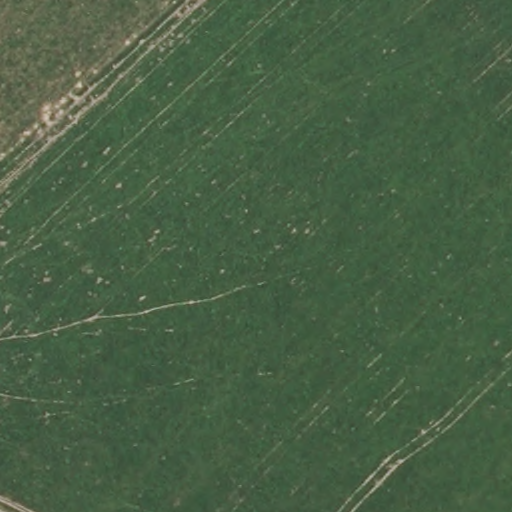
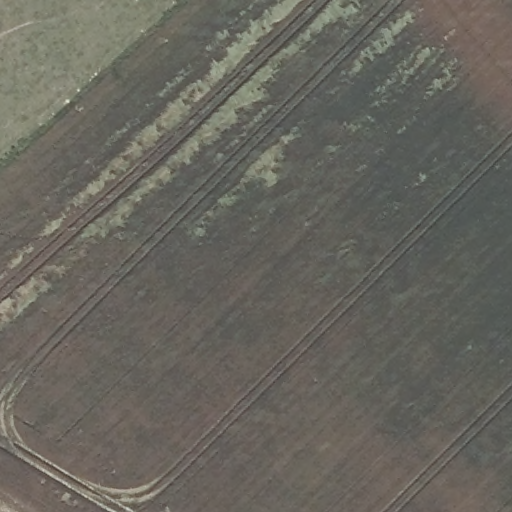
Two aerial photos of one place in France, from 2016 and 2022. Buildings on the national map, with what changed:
[]

